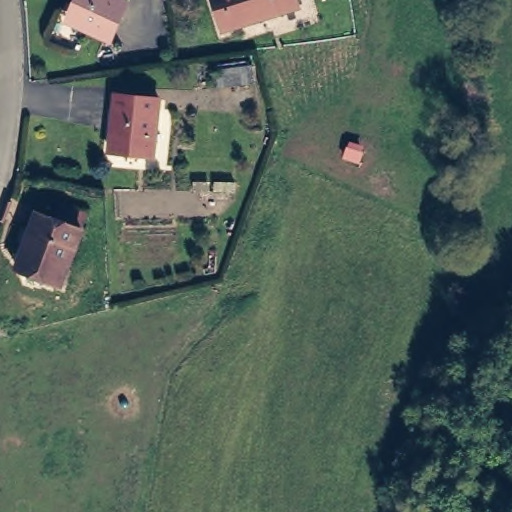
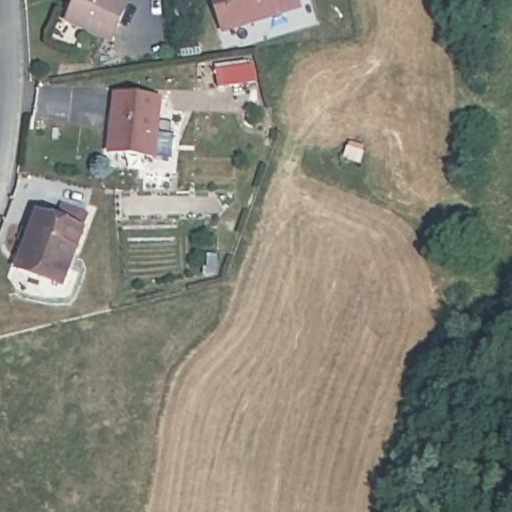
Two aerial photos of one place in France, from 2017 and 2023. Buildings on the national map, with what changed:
unchanged [(87,0),(126,0),(135,4),(120,40),(95,29),(77,20),(80,15),(87,0)]
unchanged [(230,29),(221,0),(304,0),(305,7),(230,29)]
unchanged [(255,83),(218,89),(216,70),(252,66),(255,83)]
unchanged [(110,152),(117,98),(158,104),(151,156),(110,152)]
unchanged [(21,268),(23,262),(43,212),(58,218),(63,204),(89,213),(83,228),(87,229),(67,279),(65,284),(21,268)]

